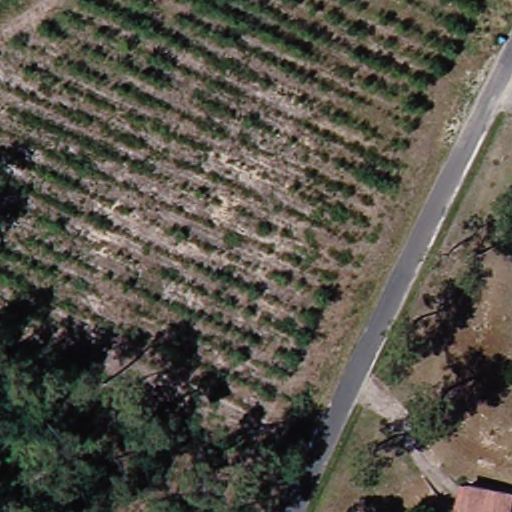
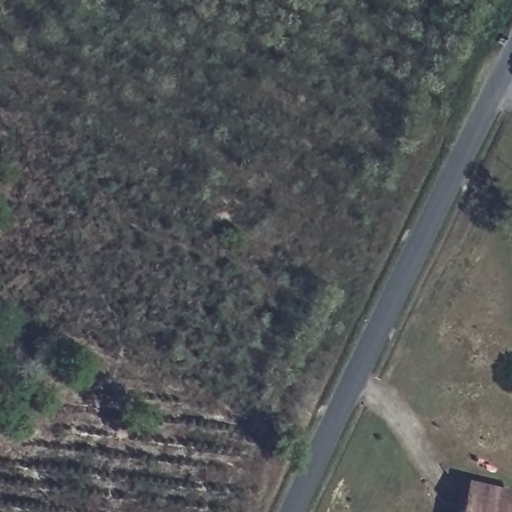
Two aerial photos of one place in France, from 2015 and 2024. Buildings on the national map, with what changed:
unchanged [(504,512),(455,512),(465,478),(510,488),(504,512)]

